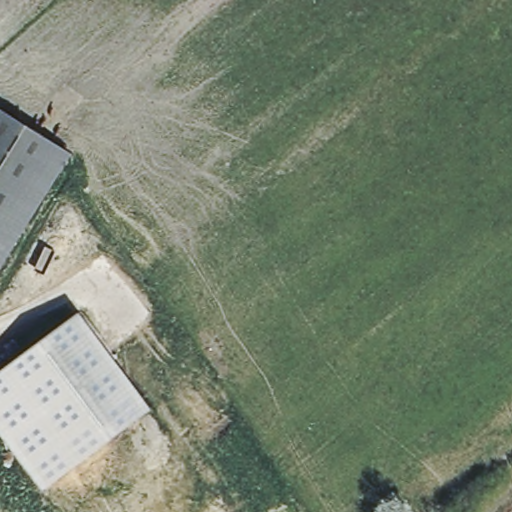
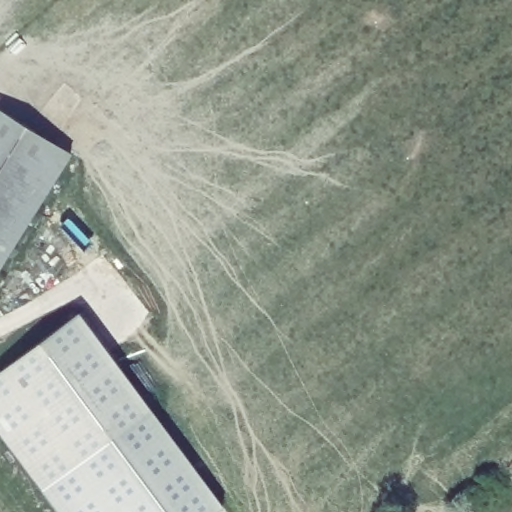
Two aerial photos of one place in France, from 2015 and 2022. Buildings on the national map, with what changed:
unchanged [(0,212),(0,113),(43,139),(0,212)]
unchanged [(70,155),(0,271),(0,212),(43,139),(70,155)]
unchanged [(153,413),(43,490),(0,432),(0,373),(80,316),(153,413)]
new [(60,512),(43,490),(153,413),(223,506),(215,512),(60,512)]

